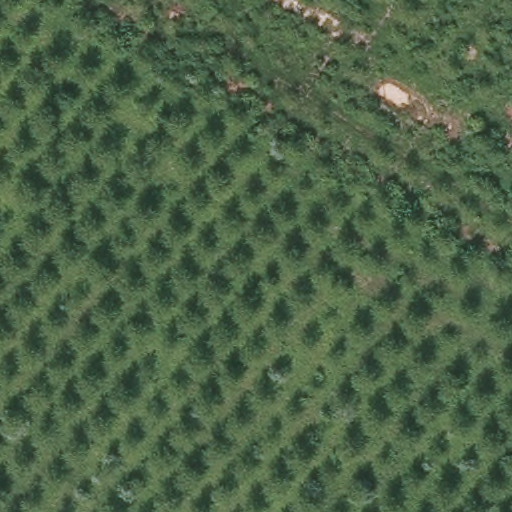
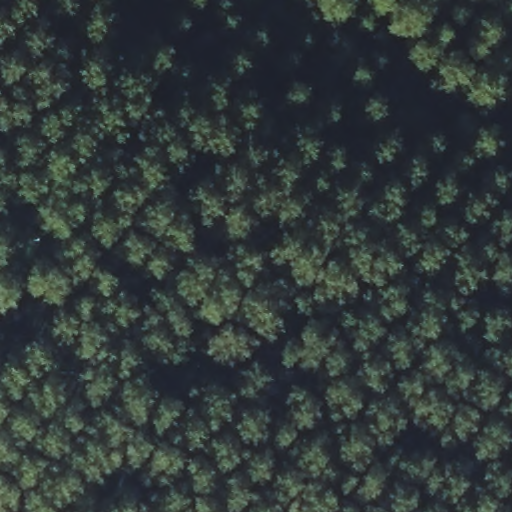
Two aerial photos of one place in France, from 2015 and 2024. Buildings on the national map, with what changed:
[]

